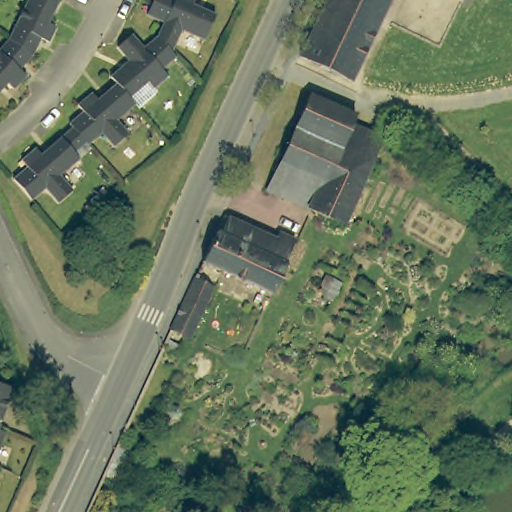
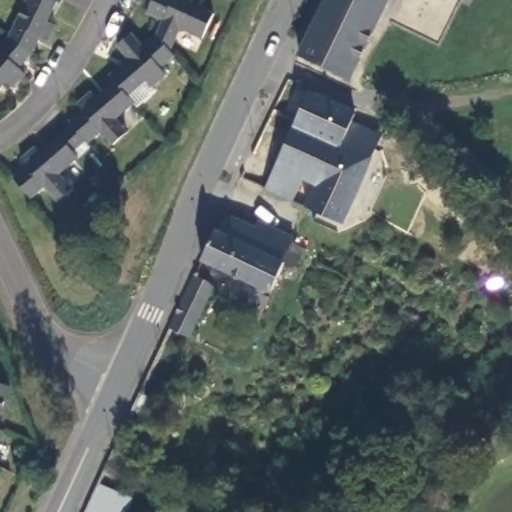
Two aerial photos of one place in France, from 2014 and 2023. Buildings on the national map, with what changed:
unchanged [(13,43),(34,0),(49,0),(56,4),(61,5),(51,26),(59,30),(52,45),(44,41),(36,59),(23,73),(29,79),(17,92),(10,86),(0,98),(0,51),(3,54),(13,43)]
unchanged [(112,150),(100,136),(86,148),(84,146),(72,156),(77,162),(57,180),(70,195),(56,206),(43,191),(29,203),(12,182),(26,170),(20,164),(34,152),(40,159),(71,131),(68,127),(82,115),(76,109),(90,96),(96,104),(115,87),(109,80),(128,65),(116,50),(130,39),(142,52),(154,42),(156,40),(162,25),(145,18),(154,0),(171,0),(173,1),(174,0),(193,0),(194,0),(190,9),(213,19),(202,44),(179,34),(169,55),(174,61),(160,72),(165,80),(151,91),(145,85),(127,101),(129,103),(133,108),(114,124),(126,138),(112,150)]
unchanged [(304,50),(305,50),(329,0),(391,0),(355,74),(304,50)]
unchanged [(267,194),(310,100),(354,120),(351,126),(382,141),(343,229),(267,194)]
unchanged [(281,242),(273,260),(220,235),(229,217),(281,242)]
unchanged [(250,285),(225,274),(206,265),(220,235),(273,260),(281,242),(284,236),(299,242),(287,267),(289,267),(275,297),(250,285)]
unchanged [(216,297),(194,345),(193,347),(174,339),(197,288),(216,297)]
unchanged [(0,433),(0,388),(14,392),(0,433)]
unchanged [(7,436),(0,461),(0,433),(7,436)]
new [(134,498),(127,512),(85,512),(99,483),(134,498)]

